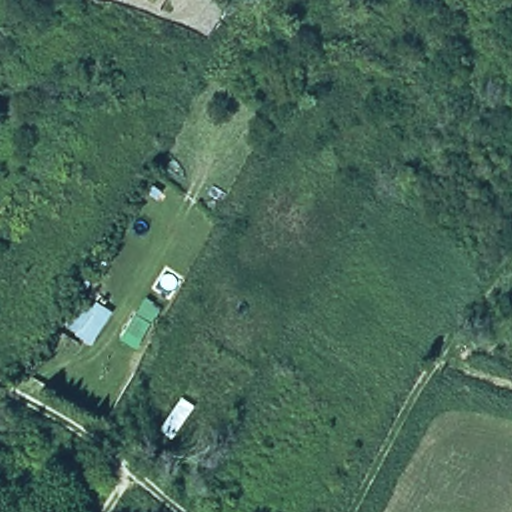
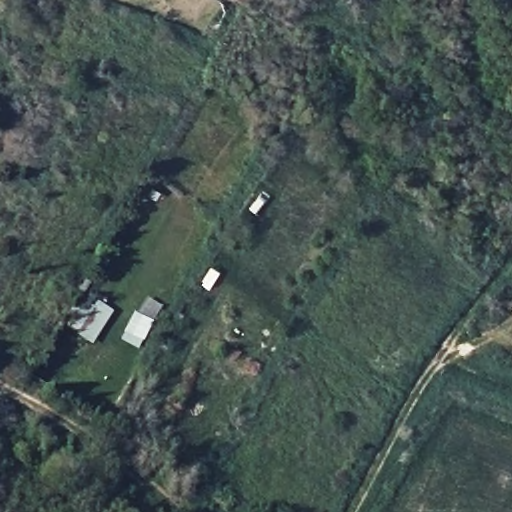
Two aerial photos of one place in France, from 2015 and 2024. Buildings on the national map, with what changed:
unchanged [(96,348),(71,335),(89,298),(115,311),(96,348)]

